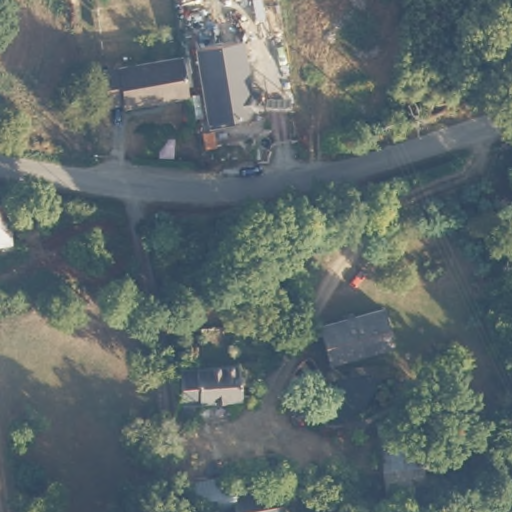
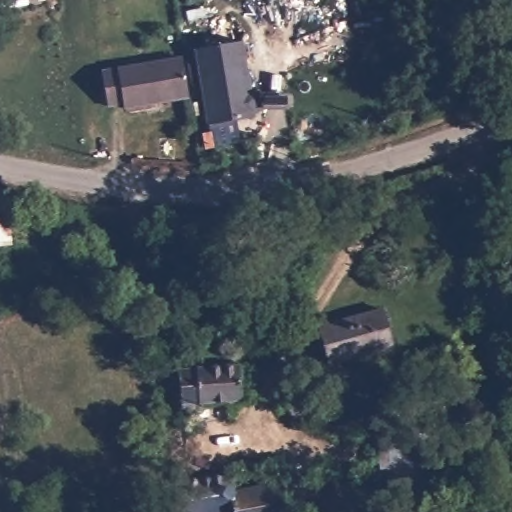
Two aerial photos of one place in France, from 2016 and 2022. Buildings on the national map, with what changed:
unchanged [(244,43),(259,118),(206,129),(192,51),(244,43)]
unchanged [(124,109),(123,103),(108,105),(101,71),(181,57),(187,96),(124,109)]
unchanged [(0,261),(0,202),(5,202),(10,260),(0,261)]
unchanged [(396,343),(330,361),(319,323),(385,305),(396,343)]
unchanged [(205,414),(198,414),(193,388),(188,369),(196,368),(224,363),(246,360),(252,394),(252,395),(230,398),(204,401),(205,414)]
unchanged [(406,449),(407,478),(373,477),(374,447),(406,449)]
unchanged [(213,512),(214,508),(197,509),(198,504),(175,506),(177,476),(228,467),(236,512),(213,512)]

